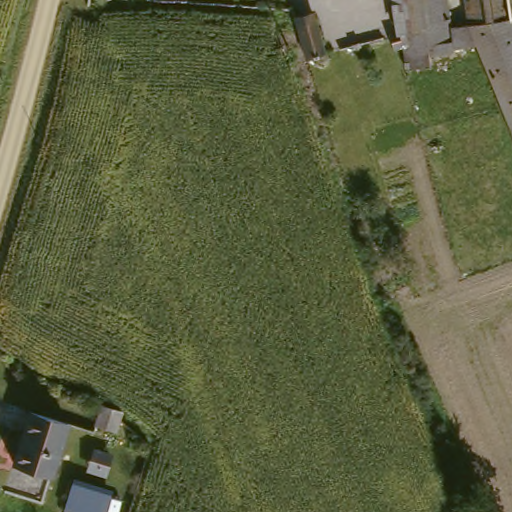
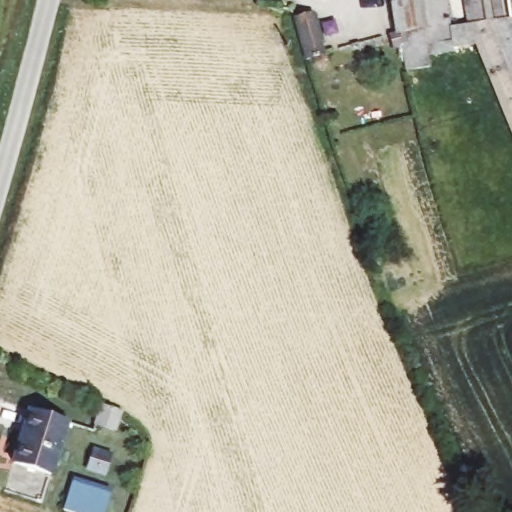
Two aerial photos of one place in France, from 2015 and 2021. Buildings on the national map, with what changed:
unchanged [(389,52),(386,37),(396,35),(391,0),(437,0),(441,27),(403,34),(406,50),(399,51),(389,52)]
unchanged [(469,29),(465,0),(506,0),(509,20),(512,27),(512,130),(479,51),(446,57),(442,32),(469,29)]
unchanged [(314,12),(324,55),(306,59),(294,16),(314,12)]
unchanged [(406,50),(403,34),(441,27),(442,32),(446,57),(447,61),(433,65),(433,70),(404,76),(399,51),(406,50)]
unchanged [(510,189),(512,188),(512,193),(510,189)]
unchanged [(31,411),(67,422),(49,475),(14,463),(31,411)]
unchanged [(110,498),(121,501),(119,512),(68,512),(60,510),(70,478),(112,490),(110,498)]

